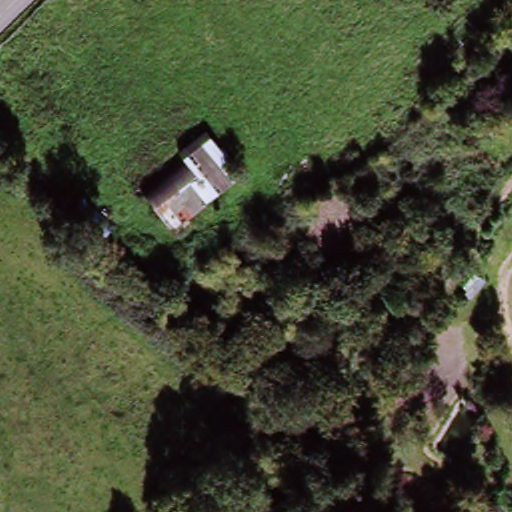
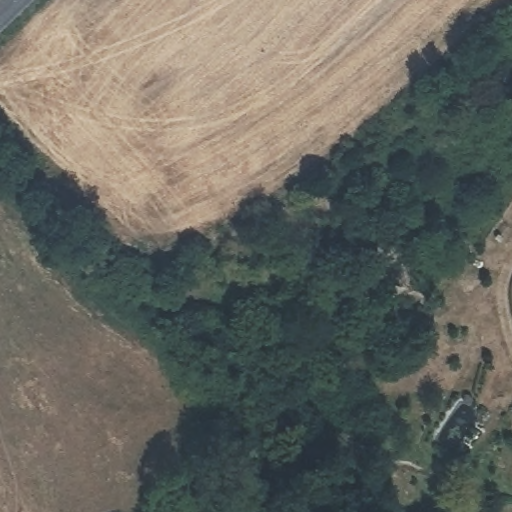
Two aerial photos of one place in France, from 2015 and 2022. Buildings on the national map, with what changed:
demolished [(237,173),(170,229),(139,191),(205,134),(237,173)]

